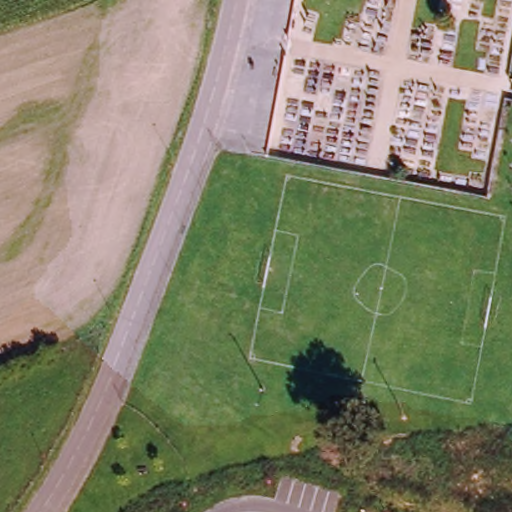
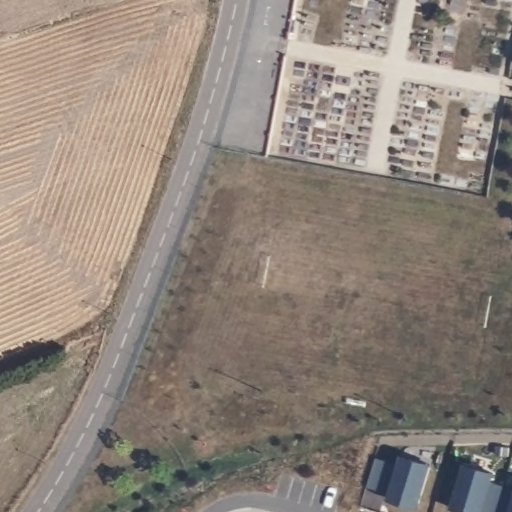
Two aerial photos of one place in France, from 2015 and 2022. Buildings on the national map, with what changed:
new [(387,498),(389,492),(369,484),(377,457),(397,465),(400,454),(430,462),(417,506),(387,498)]
new [(492,473),(481,512),(463,512),(450,508),(462,464),(492,473)]
new [(483,512),(481,511),(490,482),(502,486),(512,489),(512,499),(508,512),(483,512)]
new [(508,512),(512,500),(512,512),(508,512)]

